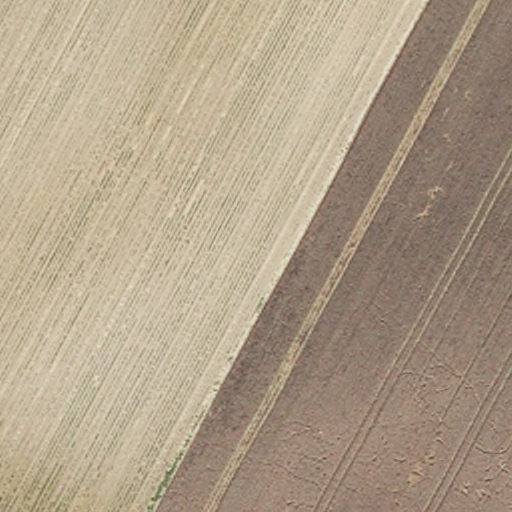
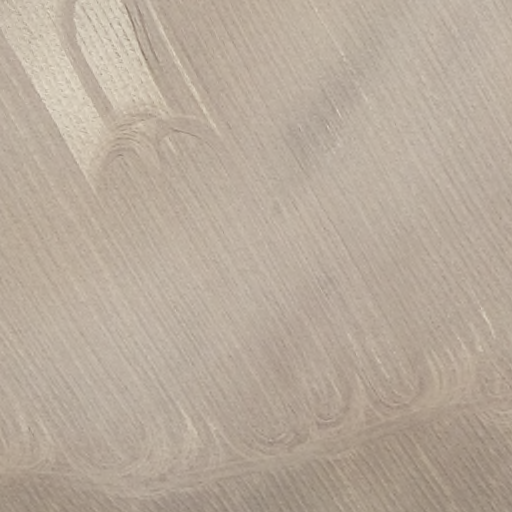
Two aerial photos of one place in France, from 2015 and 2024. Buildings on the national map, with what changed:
[]

